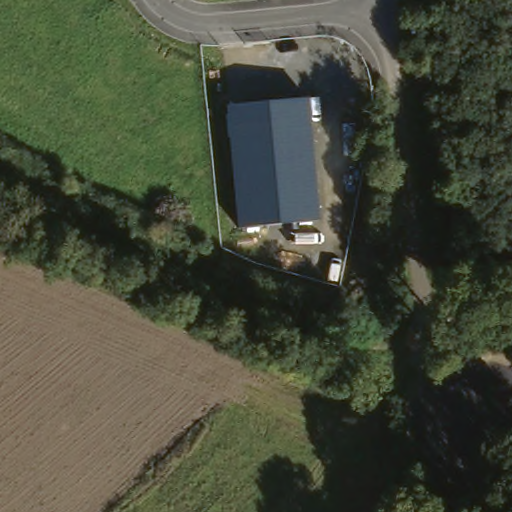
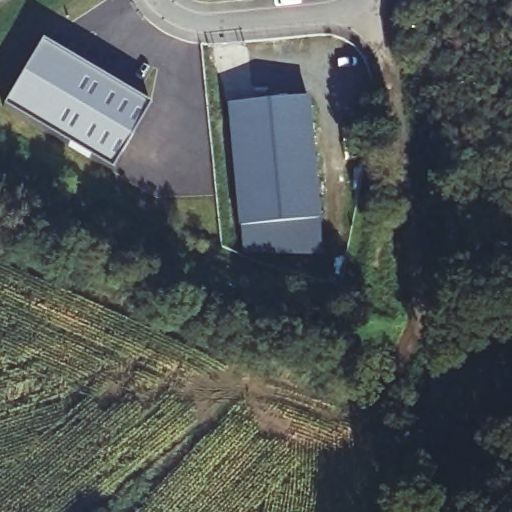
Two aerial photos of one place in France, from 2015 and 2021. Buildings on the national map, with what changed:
new [(42,37),(152,100),(114,166),(4,103),(42,37)]
unchanged [(227,104),(310,98),(320,221),(239,227),(227,104)]

